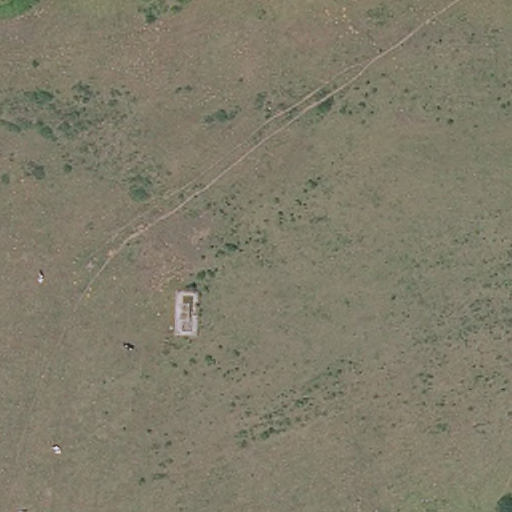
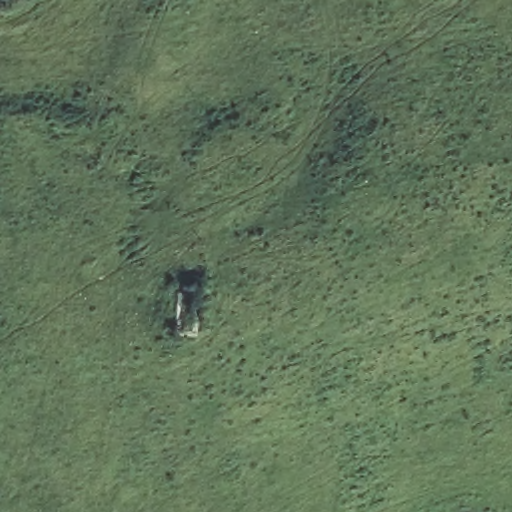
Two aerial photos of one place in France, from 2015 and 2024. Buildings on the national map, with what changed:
unchanged [(169,330),(170,286),(191,287),(193,331),(169,330)]

